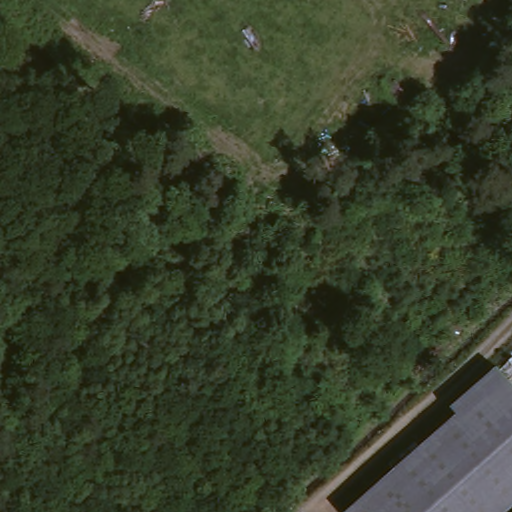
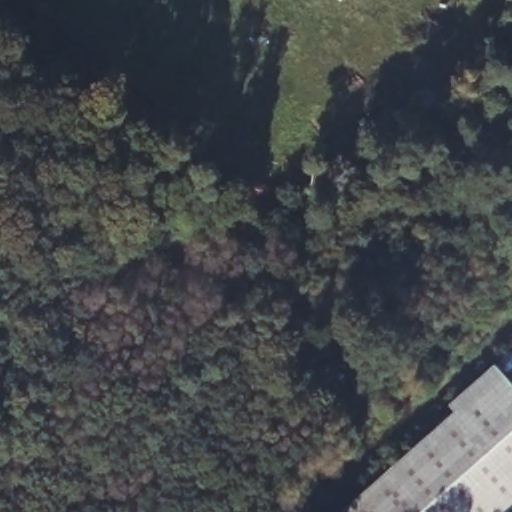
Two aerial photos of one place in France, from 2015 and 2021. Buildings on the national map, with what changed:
unchanged [(461,412),(454,400),(496,365),(512,382),(512,510),(510,512),(353,512),(349,507),(461,412)]

